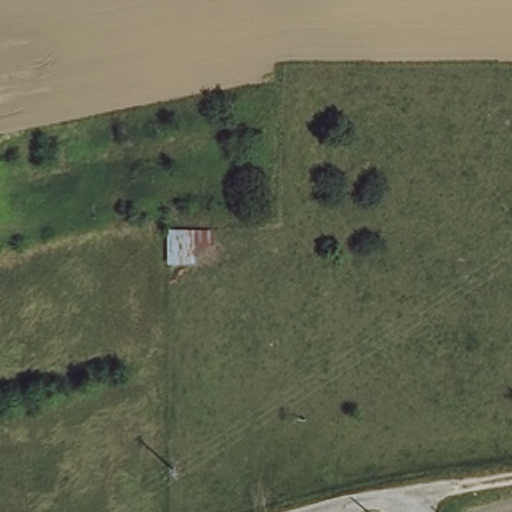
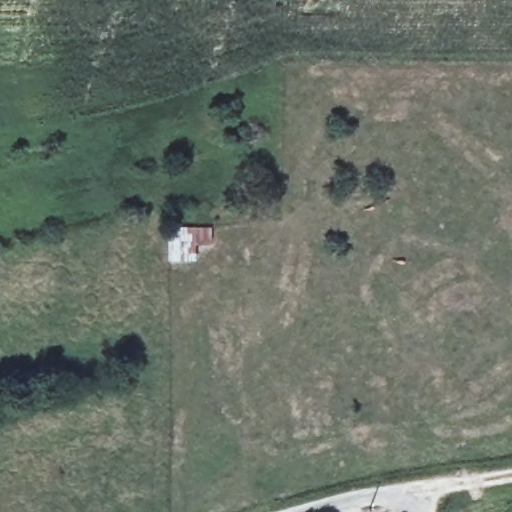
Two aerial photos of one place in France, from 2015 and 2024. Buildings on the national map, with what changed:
unchanged [(164,224),(208,224),(208,249),(194,249),(195,263),(166,262),(164,224)]

